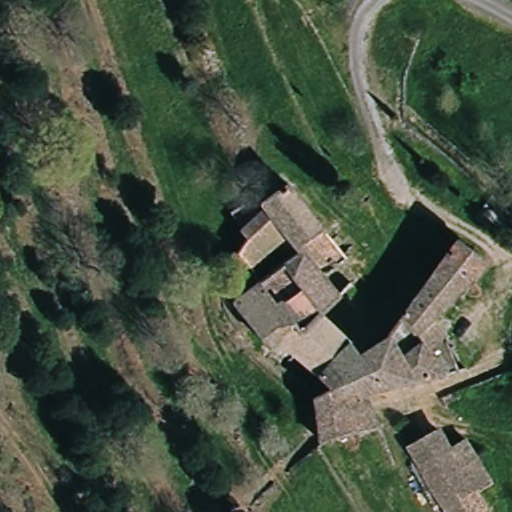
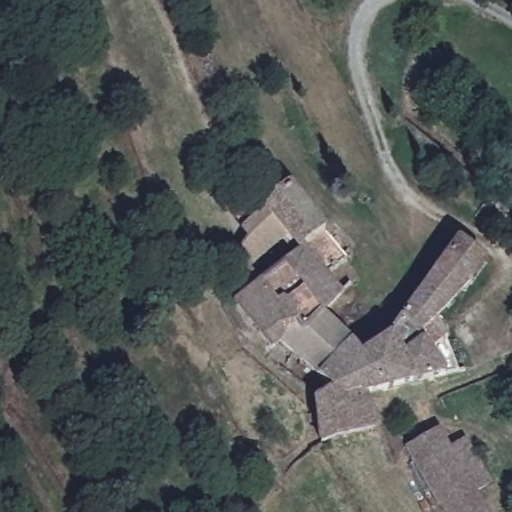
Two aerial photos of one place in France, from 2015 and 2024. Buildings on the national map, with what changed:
unchanged [(237,224),(288,181),(320,226),(293,246),(286,237),(248,267),(236,251),(247,238),(237,224)]
unchanged [(451,237),(479,261),(431,322),(444,337),(432,348),(426,341),(402,358),(382,331),(451,237)]
unchanged [(335,301),(317,317),(273,273),(292,254),(317,282),(335,301)]
unchanged [(237,306),(265,280),(273,273),(317,317),(302,332),(297,326),(272,354),(237,306)]
unchanged [(272,366),(276,361),(272,354),(297,326),(302,332),(317,317),(348,346),(318,369),(297,384),(272,366)]
unchanged [(317,446),(308,396),(329,384),(318,369),(348,346),(356,359),(382,331),(402,358),(426,341),(432,348),(455,379),(366,398),(372,427),(373,436),(321,447),(317,446)]
unchanged [(472,492),(438,508),(402,448),(438,431),(447,445),(465,436),(480,465),(489,483),(472,492)]
unchanged [(479,488),(491,512),(440,512),(438,508),(472,492),(479,488)]

